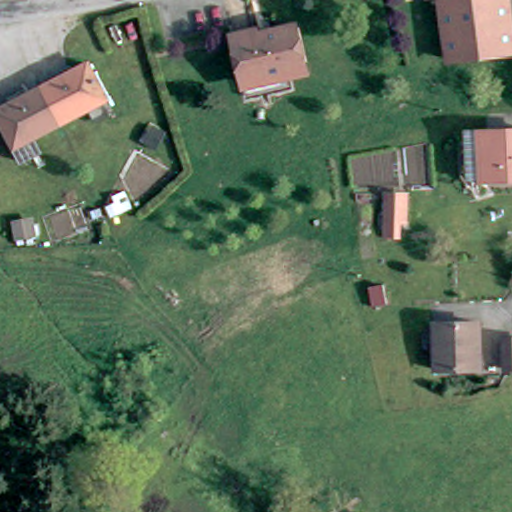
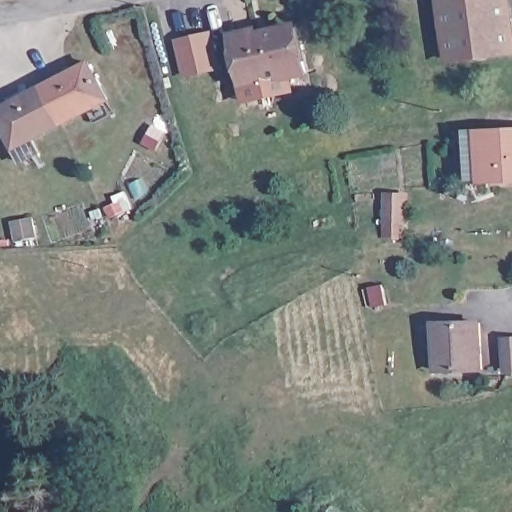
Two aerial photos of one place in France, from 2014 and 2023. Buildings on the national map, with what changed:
unchanged [(441,0),(509,0),(511,55),(490,55),(444,56),(442,16),(441,0)]
unchanged [(289,85),(265,89),(262,89),(247,91),(245,76),(242,58),(237,29),(243,28),(260,25),(261,30),(299,24),(302,40),(307,70),(287,73),(288,80),(289,85)]
new [(221,69),(183,79),(174,39),(213,29),(221,69)]
unchanged [(0,129),(0,103),(41,84),(84,62),(101,99),(57,120),(25,135),(29,144),(31,148),(31,149),(14,158),(11,150),(0,129)]
unchanged [(480,174),(481,129),(512,129),(512,174),(480,174)]
unchanged [(407,191),(402,216),(381,212),(387,186),(407,191)]
unchanged [(20,214),(22,229),(2,231),(0,216),(20,214)]
unchanged [(365,296),(368,316),(354,318),(351,298),(365,296)]
unchanged [(450,364),(434,364),(434,318),(479,319),(479,360),(479,365),(450,364)]
unchanged [(503,371),(503,365),(502,335),(512,335),(512,371),(503,371)]

